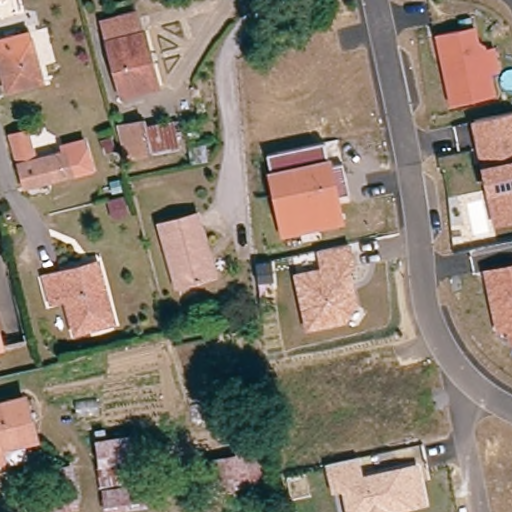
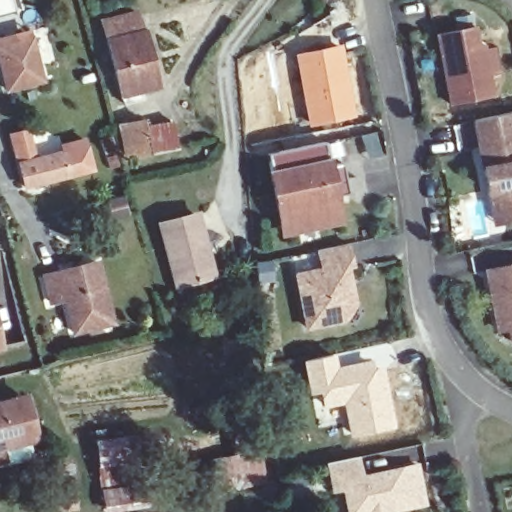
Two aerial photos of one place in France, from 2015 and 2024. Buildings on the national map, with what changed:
unchanged [(19,0),(20,3),(0,9),(0,0),(19,0)]
unchanged [(138,10),(144,29),(148,28),(162,84),(126,93),(104,21),(138,10)]
unchanged [(30,25),(42,66),(6,78),(0,55),(0,35),(30,25)]
unchanged [(451,106),(436,36),(474,28),(477,44),(484,48),(484,52),(493,50),(498,73),(489,75),(494,97),(451,106)]
new [(343,43),(360,116),(311,126),(294,53),(343,43)]
unchanged [(497,210),(479,122),(507,116),(512,115),(512,223),(500,225),(497,210)]
unchanged [(137,121),(139,130),(166,123),(172,145),(127,155),(119,126),(137,121)]
unchanged [(60,149),(82,143),(90,172),(23,189),(17,168),(10,139),(28,134),(36,163),(62,156),(60,149)]
unchanged [(279,225),(267,162),(265,154),(277,152),(314,144),(324,142),(328,166),(342,164),(348,195),(334,197),(339,221),(292,230),(281,233),(279,225)]
unchanged [(187,218),(192,232),(194,231),(206,278),(172,289),(156,227),(187,218)]
unchanged [(317,250),(351,244),(356,265),(351,270),(359,305),(347,323),(305,333),(293,272),(319,267),(317,250)]
unchanged [(506,326),(497,327),(485,268),(512,263),(512,338),(509,339),(506,326)]
unchanged [(54,270),(55,275),(91,268),(104,324),(67,332),(58,299),(43,303),(35,274),(54,270)]
unchanged [(1,341),(0,341),(0,337),(1,341)]
new [(336,352),(339,364),(374,357),(377,367),(383,366),(397,429),(351,438),(342,404),(326,408),(320,393),(308,396),(301,359),(336,352)]
unchanged [(24,405),(35,445),(0,454),(0,411),(24,405)]
unchanged [(99,485),(92,447),(131,442),(139,479),(99,485)]
unchanged [(262,504),(241,512),(230,512),(212,467),(242,453),(262,504)]
unchanged [(426,505),(396,512),(346,512),(341,491),(331,493),(325,463),(360,457),(364,474),(417,462),(426,505)]

